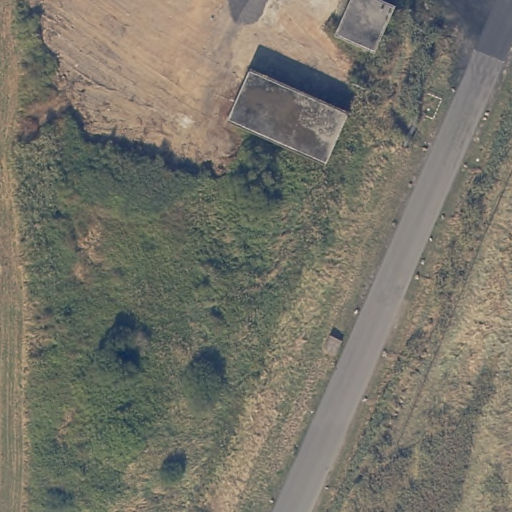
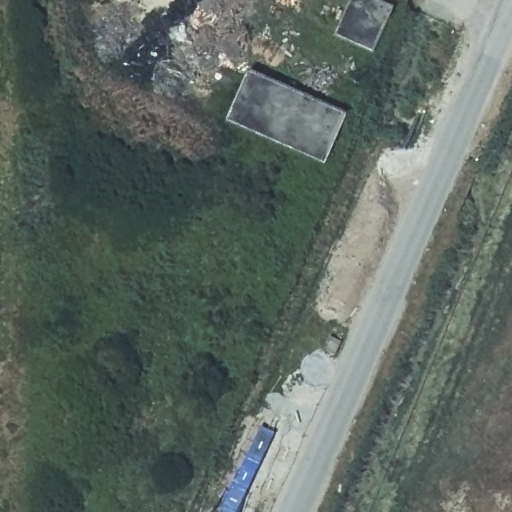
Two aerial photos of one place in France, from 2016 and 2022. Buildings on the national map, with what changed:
unchanged [(332,26),(344,0),(387,0),(369,43),(332,26)]
unchanged [(230,115),(249,73),(343,114),(325,158),(230,115)]

